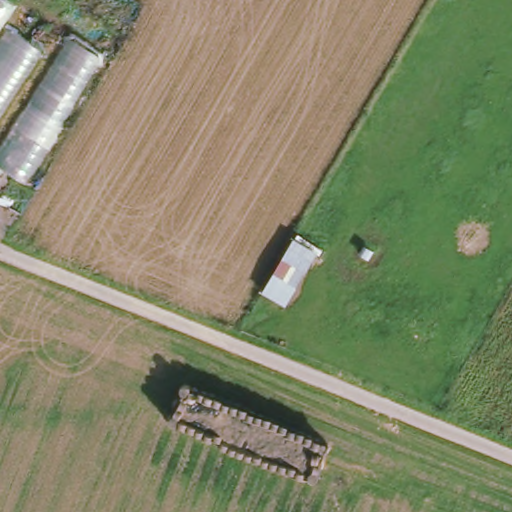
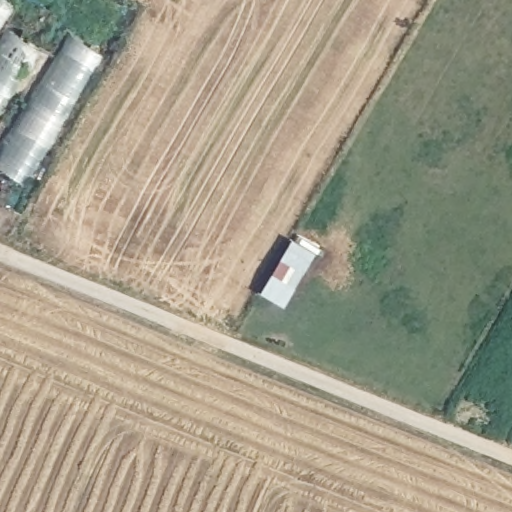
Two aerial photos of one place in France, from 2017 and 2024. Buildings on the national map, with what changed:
unchanged [(0,30),(0,0),(9,0),(16,4),(0,30)]
unchanged [(41,49),(0,111),(0,50),(11,32),(41,49)]
unchanged [(105,54),(23,185),(0,170),(0,158),(72,37),(105,54)]
unchanged [(318,253),(284,310),(260,294),(293,238),(318,253)]

